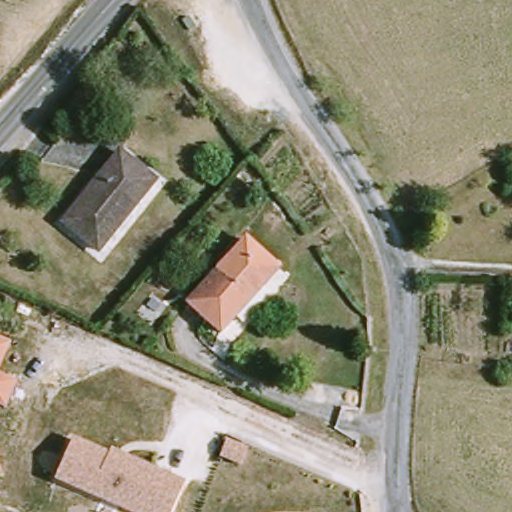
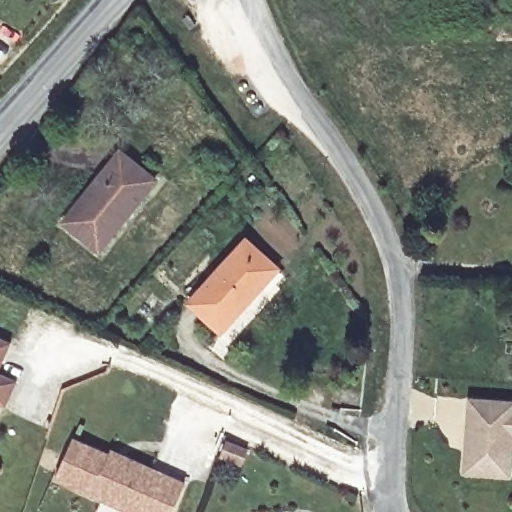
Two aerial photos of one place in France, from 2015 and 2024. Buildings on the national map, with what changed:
unchanged [(207,36),(201,39),(196,28),(202,25),(207,36)]
unchanged [(170,174),(110,248),(76,220),(137,145),(170,174)]
unchanged [(186,303),(229,255),(266,285),(221,333),(186,303)]
unchanged [(7,344),(0,361),(0,340),(7,344)]
unchanged [(18,382),(7,409),(0,406),(0,373),(18,382)]
new [(467,397),(512,400),(511,412),(512,412),(512,431),(509,431),(506,473),(462,469),(463,447),(465,416),(467,397)]
unchanged [(73,436),(110,452),(113,447),(187,481),(173,512),(126,512),(55,480),(73,436)]
unchanged [(1,473),(0,473),(0,469),(1,473)]

